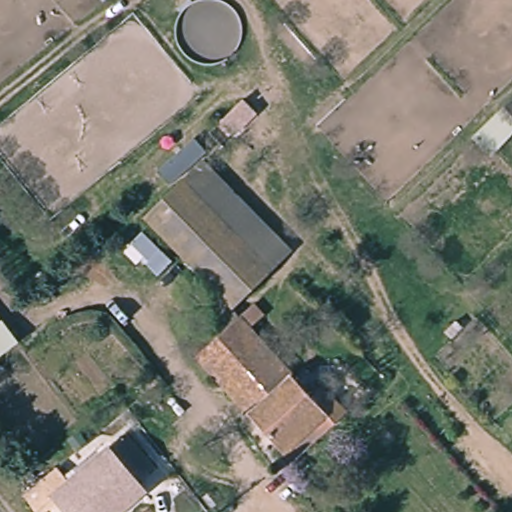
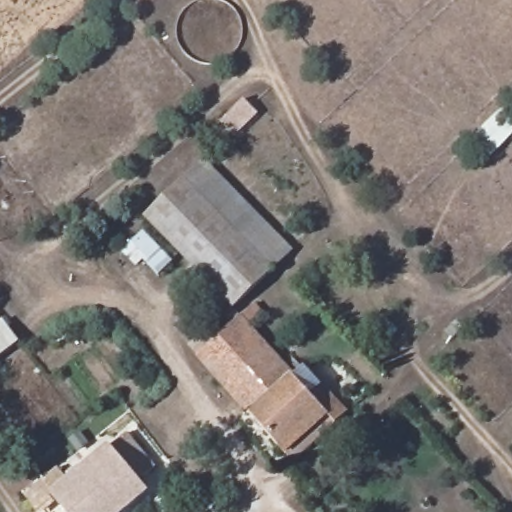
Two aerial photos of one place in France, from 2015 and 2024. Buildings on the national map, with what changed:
unchanged [(490,159),(470,139),(505,105),(512,113),(512,136),(490,159)]
unchanged [(188,176),(207,157),(289,246),(285,250),(270,265),(188,176)]
unchanged [(270,265),(235,298),(153,211),(188,176),(270,265)]
unchanged [(3,321),(20,342),(0,357),(0,317),(3,321)]
unchanged [(316,384),(343,412),(332,423),(323,413),(283,450),(194,356),(235,319),(305,395),(316,384)]
unchanged [(48,492),(62,482),(58,477),(90,454),(94,460),(107,449),(141,495),(117,512),(62,512),(48,492)]

